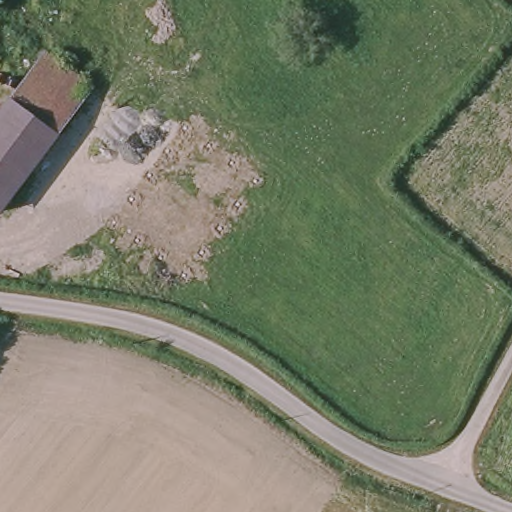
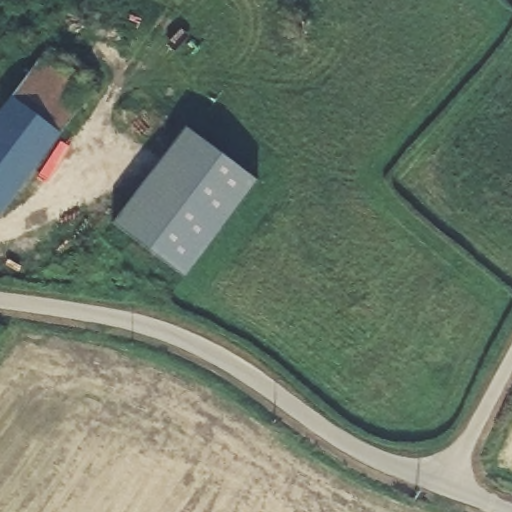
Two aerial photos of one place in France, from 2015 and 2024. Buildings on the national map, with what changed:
unchanged [(87,84),(0,196),(0,114),(48,52),(87,84)]
new [(185,127),(257,181),(184,277),(112,223),(185,127)]

